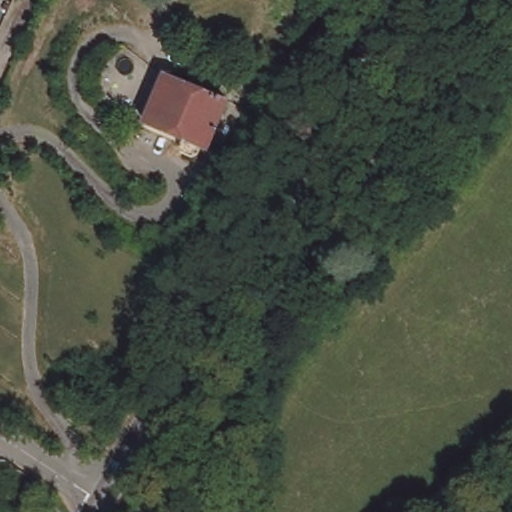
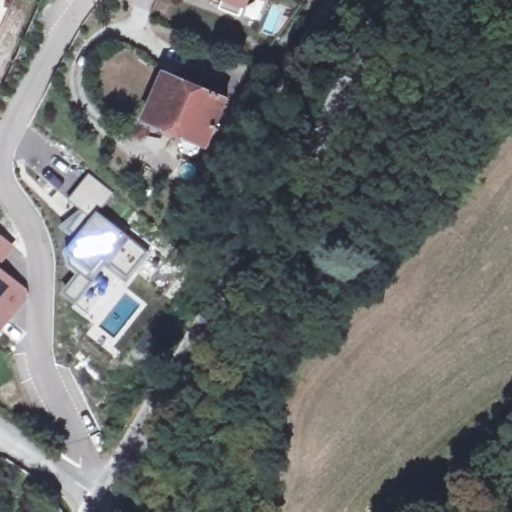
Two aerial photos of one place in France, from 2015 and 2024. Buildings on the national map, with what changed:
new [(248,11),(242,9),(240,17),(219,10),(222,1),(219,0),(252,0),(248,11)]
unchanged [(165,74),(230,106),(208,155),(203,154),(200,161),(193,160),(188,157),(185,151),(187,145),(142,122),(165,74)]
new [(100,214),(150,252),(129,278),(105,260),(90,279),(72,265),(77,257),(69,250),(79,237),(68,230),(83,211),(69,199),(88,174),(115,194),(100,214)]
new [(62,225),(81,209),(83,211),(68,230),(62,225)]
new [(12,246),(0,261),(0,236),(12,246)]
new [(20,287),(22,302),(0,329),(0,271),(20,287)]
new [(65,292),(81,272),(95,282),(79,302),(65,292)]

